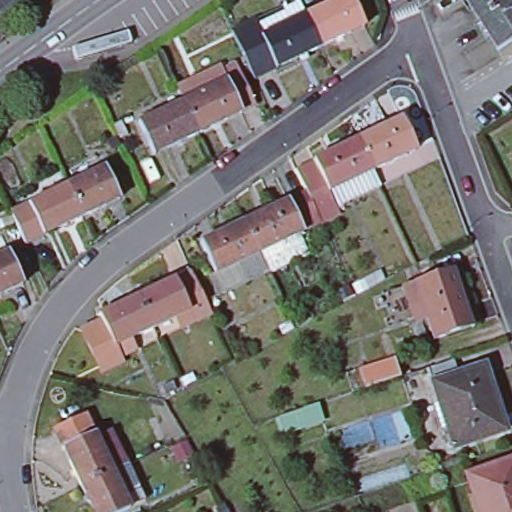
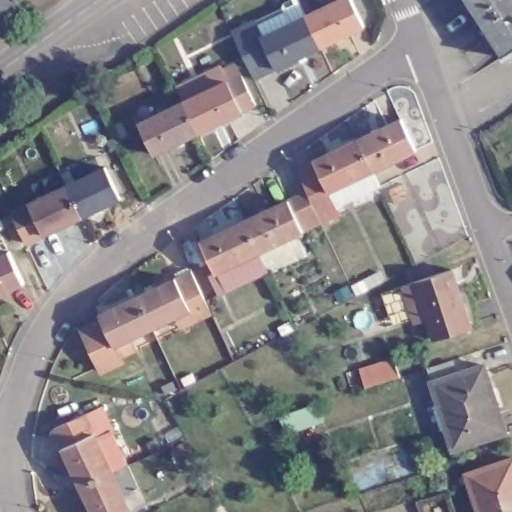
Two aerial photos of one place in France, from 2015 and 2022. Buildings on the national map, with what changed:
unchanged [(0,10),(0,0),(14,0),(0,10)]
unchanged [(332,0),(346,0),(359,26),(316,46),(300,15),(332,0)]
unchanged [(502,58),(504,57),(467,3),(465,0),(512,0),(512,55),(504,60),(502,58)]
unchanged [(259,35),(261,34),(300,15),(316,46),(274,67),(259,35)]
unchanged [(254,19),(261,34),(259,35),(274,67),(252,77),(230,31),(254,19)]
unchanged [(218,73),(235,65),(252,101),(235,109),(192,129),(179,100),(222,80),(218,73)]
unchanged [(179,100),(192,129),(150,149),(135,120),(179,100)]
unchanged [(398,116),(413,148),(369,170),(354,137),(398,116)]
unchanged [(310,159),(354,137),(369,170),(325,191),(313,165),(310,159)]
unchanged [(105,165),(120,195),(82,214),(68,184),(105,165)]
unchanged [(210,269),(197,239),(241,219),(285,199),(303,190),(295,173),(313,165),(325,191),(336,213),(317,222),(317,221),(299,229),(300,230),(255,250),(265,270),(241,281),(240,280),(215,291),(207,271),(210,269)]
unchanged [(68,184),(82,214),(45,232),(26,242),(12,212),(31,202),(68,184)]
unchanged [(9,252),(23,282),(0,294),(0,257),(9,252)]
unchanged [(453,269),(472,327),(434,340),(415,282),(453,269)]
unchanged [(187,270),(207,311),(190,319),(185,307),(150,324),(137,293),(172,277),(187,270)]
unchanged [(97,312),(137,293),(150,324),(111,342),(119,359),(99,368),(80,327),(100,318),(97,312)]
unchanged [(395,358),(400,376),(366,387),(360,369),(395,358)]
unchanged [(479,362),(500,426),(448,444),(427,380),(479,362)]
unchanged [(127,512),(89,512),(79,489),(75,481),(61,451),(52,433),(83,418),(92,437),(106,466),(110,474),(125,467),(137,492),(122,499),(127,512)]
unchanged [(512,512),(478,512),(465,475),(512,458),(512,512)]

